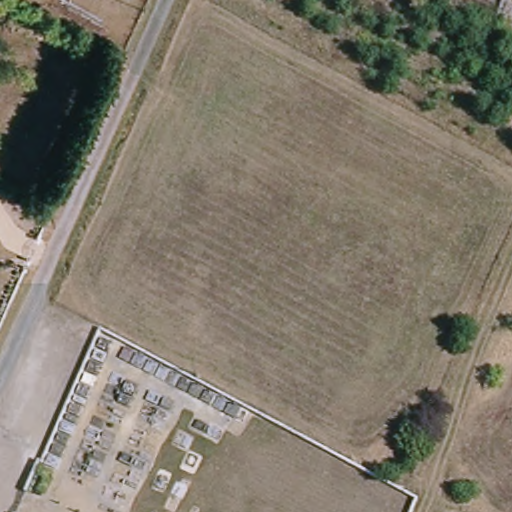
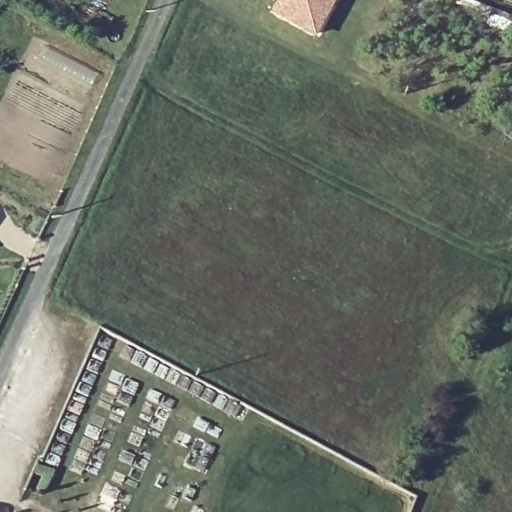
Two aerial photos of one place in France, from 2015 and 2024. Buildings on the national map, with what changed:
new [(316,37),(272,12),(278,0),(336,0),(316,37)]

